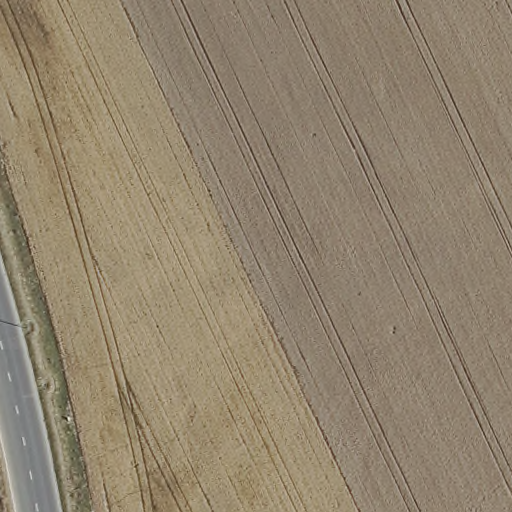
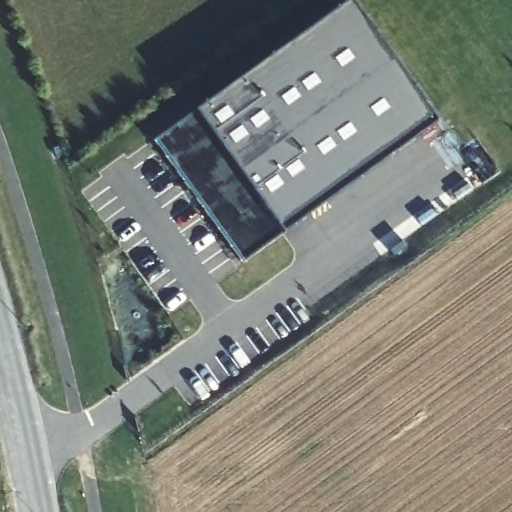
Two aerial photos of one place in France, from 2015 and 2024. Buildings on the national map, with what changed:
new [(349,0),(350,0),(438,122),(242,263),(153,140),(349,0)]
new [(200,205),(193,209),(183,194),(189,189),(200,205)]

